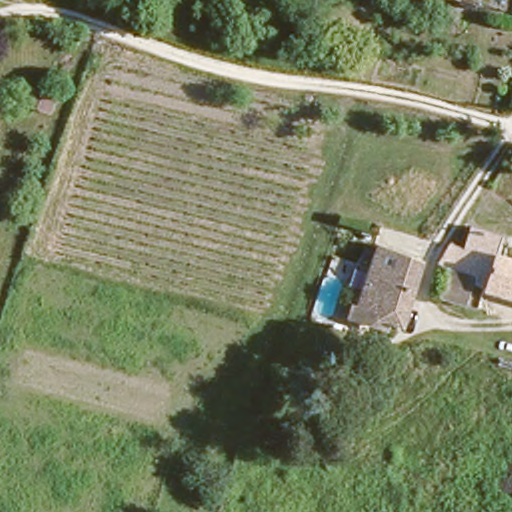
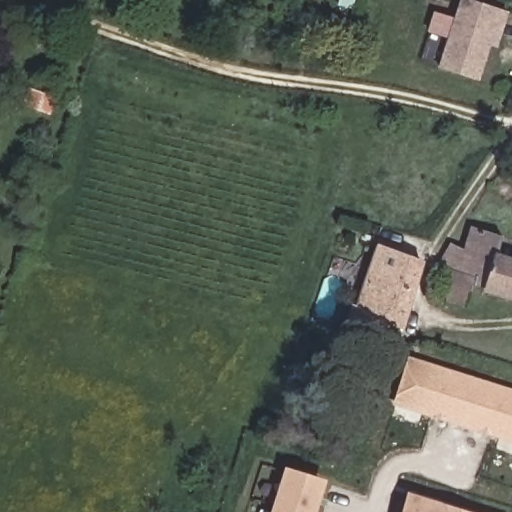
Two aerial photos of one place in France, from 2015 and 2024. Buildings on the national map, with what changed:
new [(508,12),(498,47),(491,45),(479,80),(438,67),(458,0),(481,0),(481,2),(508,12)]
unchanged [(46,89),(40,102),(10,93),(16,78),(46,89)]
unchanged [(427,288),(434,263),(434,260),(452,239),(459,240),(466,225),(497,238),(493,255),(501,258),(492,284),(491,283),(471,276),(462,300),(427,288)]
unchanged [(357,309),(375,242),(416,253),(399,320),(357,309)]
unchanged [(492,284),(501,258),(512,262),(512,292),(492,284)]
demolished [(489,378),(482,376),(485,361),(495,363),(498,350),(512,353),(512,370),(506,393),(486,388),(489,378)]
new [(512,395),(512,439),(396,402),(409,361),(512,395)]
new [(319,512),(282,512),(295,470),(330,480),(319,512)]
new [(408,497),(455,512),(403,512),(408,497)]

